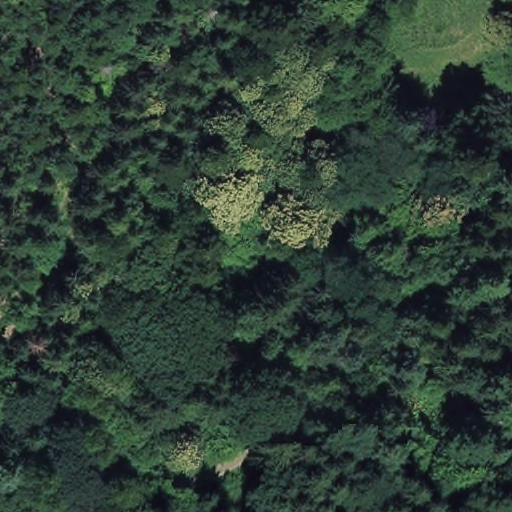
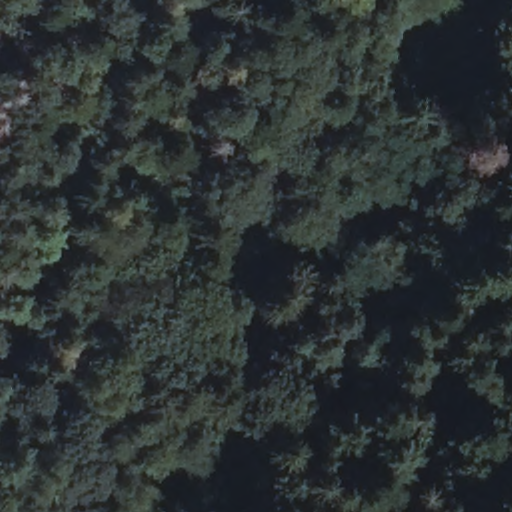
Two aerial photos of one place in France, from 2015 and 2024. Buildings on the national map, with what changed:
unchanged [(296,341),(280,330),(293,312),(308,322),(296,341)]

